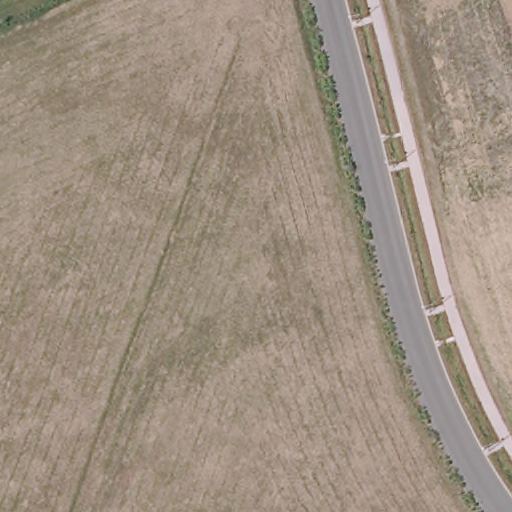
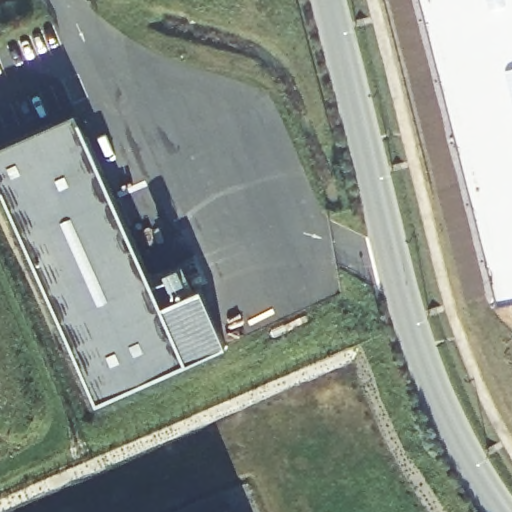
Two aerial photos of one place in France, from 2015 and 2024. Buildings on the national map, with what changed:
new [(499,299),(422,0),(512,0),(512,296),(499,299)]
new [(208,282),(233,338),(105,394),(0,165),(0,147),(79,110),(171,300),(208,282)]
new [(240,512),(222,512),(237,505),(240,512)]

